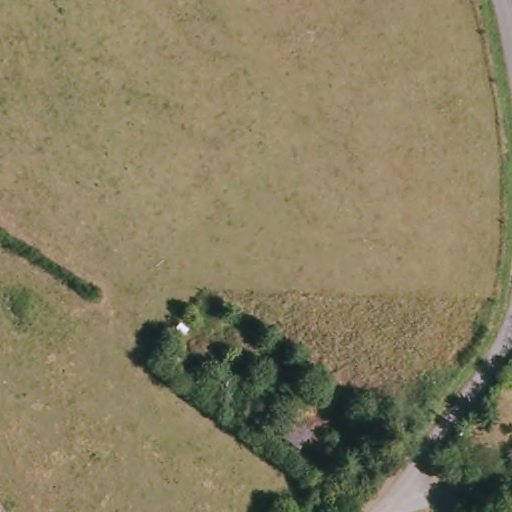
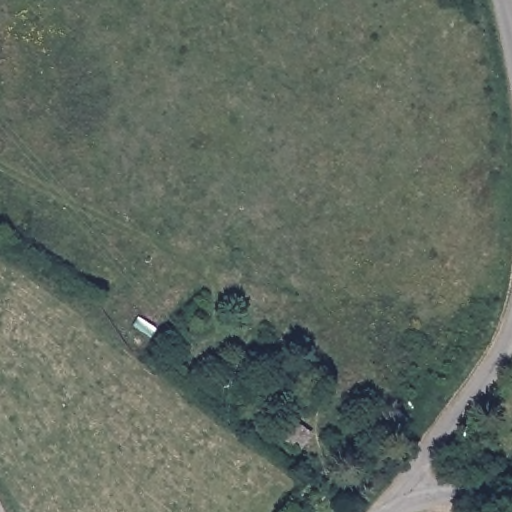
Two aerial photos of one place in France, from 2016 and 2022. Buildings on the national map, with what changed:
unchanged [(289,410),(317,431),(305,447),(279,427),(289,410)]

